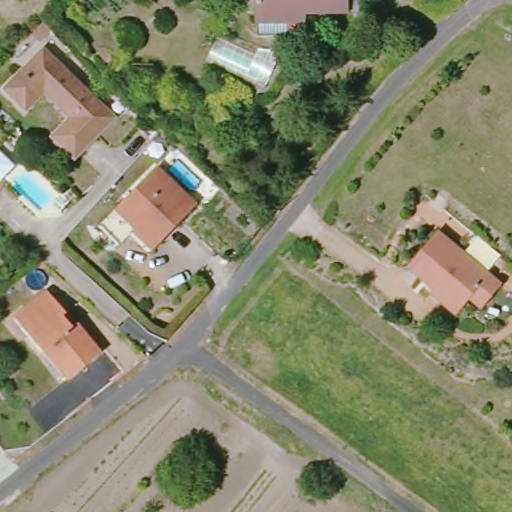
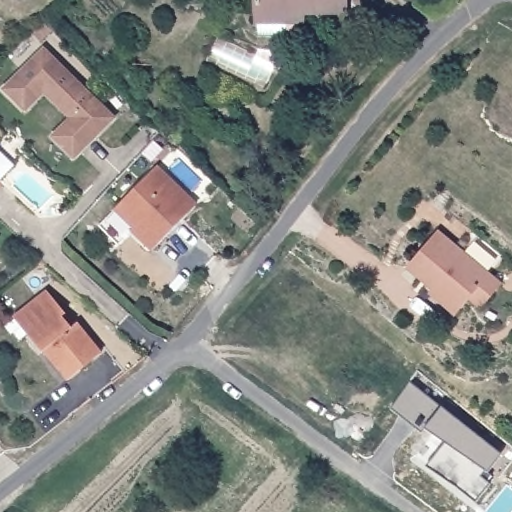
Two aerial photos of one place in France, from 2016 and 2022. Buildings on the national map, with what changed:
unchanged [(249,0),(343,0),(342,18),(296,17),(296,27),(248,26),(249,0)]
unchanged [(3,89),(42,50),(112,119),(73,159),(52,136),(70,117),(43,90),(22,110),(3,89)]
unchanged [(10,163),(0,178),(0,153),(10,163)]
unchanged [(126,197),(158,164),(200,202),(152,248),(132,227),(114,210),(126,197)]
unchanged [(480,309),(465,297),(457,308),(404,267),(432,230),(485,270),(501,282),(480,309)]
unchanged [(45,292),(62,316),(60,318),(67,329),(72,326),(96,357),(62,383),(40,352),(37,355),(22,335),(27,331),(20,320),(21,309),(45,292)]
new [(425,467),(445,440),(435,432),(432,433),(424,428),(422,431),(390,407),(410,382),(460,423),(452,432),(470,446),(478,436),(499,453),(480,476),(491,484),(476,501),(425,467)]

